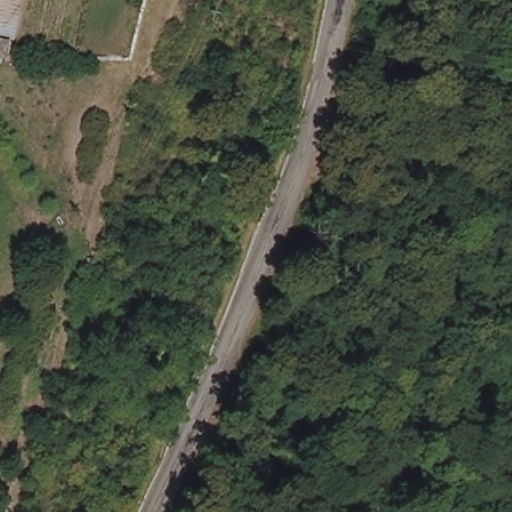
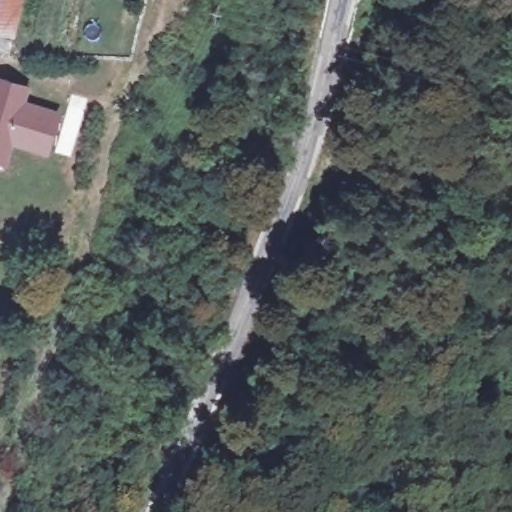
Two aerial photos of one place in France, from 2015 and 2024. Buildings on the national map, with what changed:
unchanged [(1,47),(0,47),(0,0),(10,0),(1,47)]
new [(31,86),(26,100),(65,113),(52,150),(50,158),(13,147),(7,167),(0,165),(0,76),(31,86)]
new [(65,113),(71,94),(87,98),(71,155),(52,150),(65,113)]

